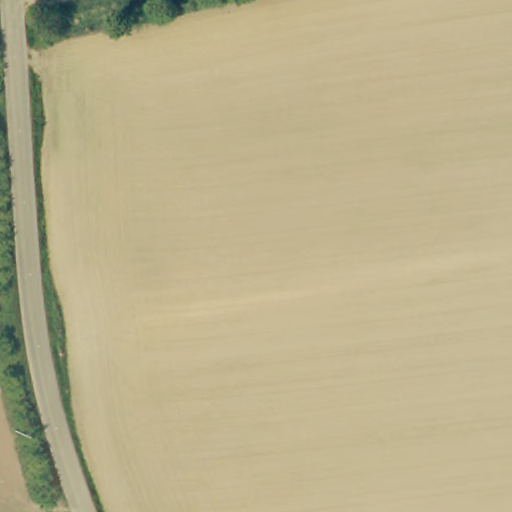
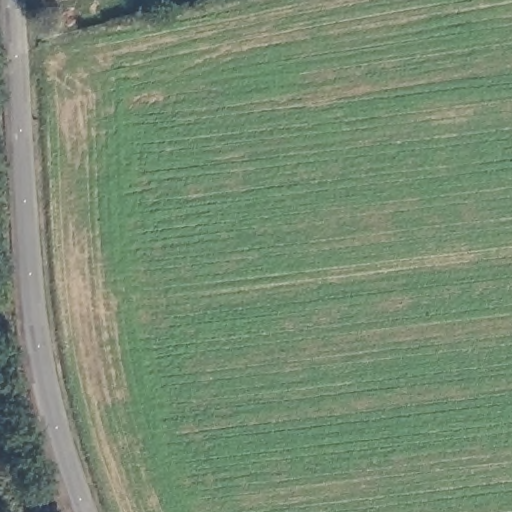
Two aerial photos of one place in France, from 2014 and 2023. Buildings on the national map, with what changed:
[]

